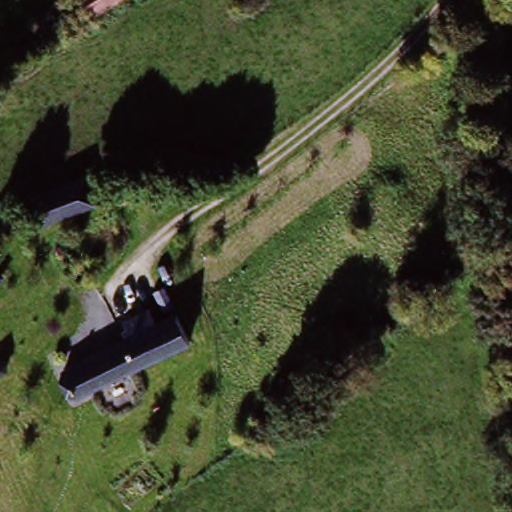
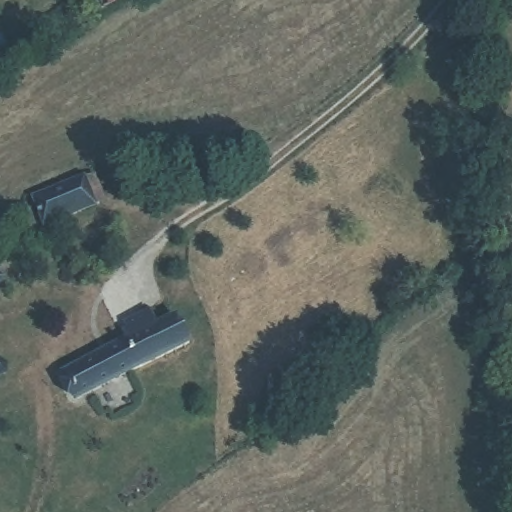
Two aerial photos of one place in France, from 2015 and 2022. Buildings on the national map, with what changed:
unchanged [(31,37),(83,0),(126,0),(45,56),(31,37)]
unchanged [(88,177),(98,201),(36,225),(27,201),(88,177)]
unchanged [(186,342),(79,408),(68,385),(123,352),(116,340),(142,324),(149,336),(171,322),(186,342)]

